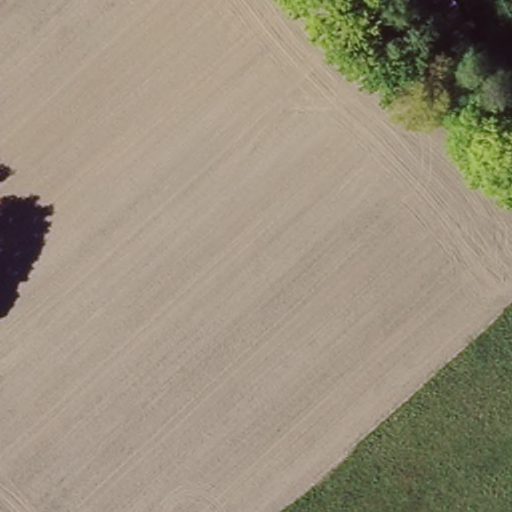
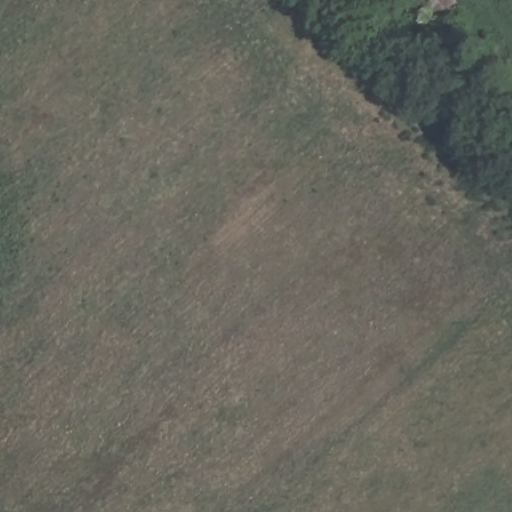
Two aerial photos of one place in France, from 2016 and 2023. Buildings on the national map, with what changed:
[]

